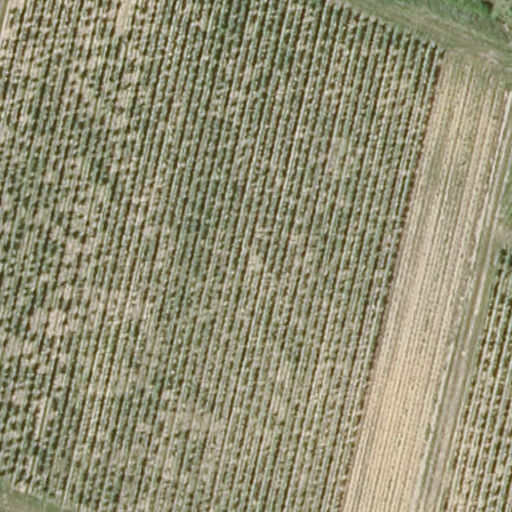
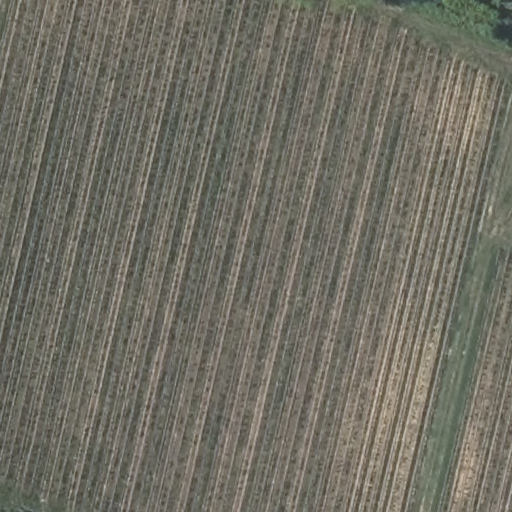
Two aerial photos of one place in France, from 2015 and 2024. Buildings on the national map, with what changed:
unchanged [(396,0),(417,0),(413,10),(395,2),(396,0)]

